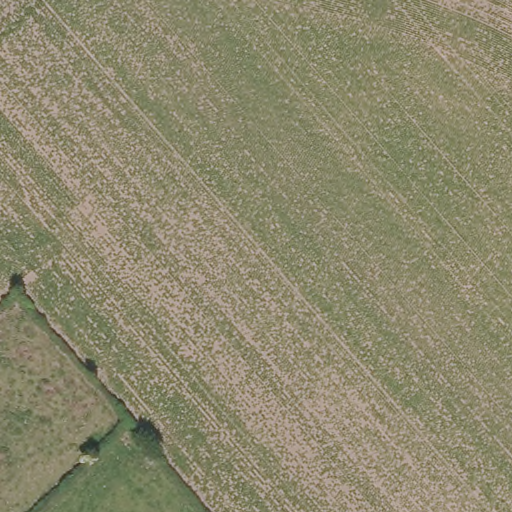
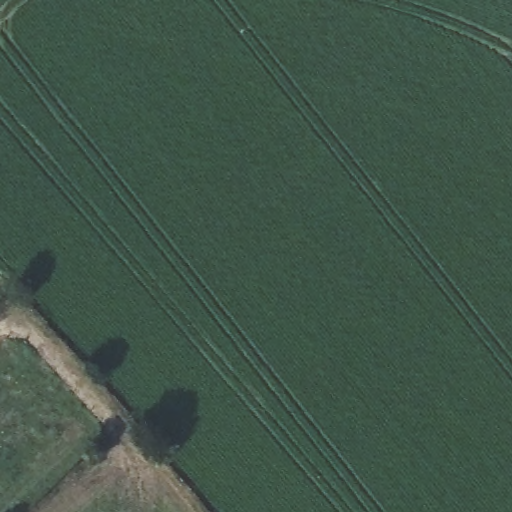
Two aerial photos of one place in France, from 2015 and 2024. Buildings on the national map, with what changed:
[]

